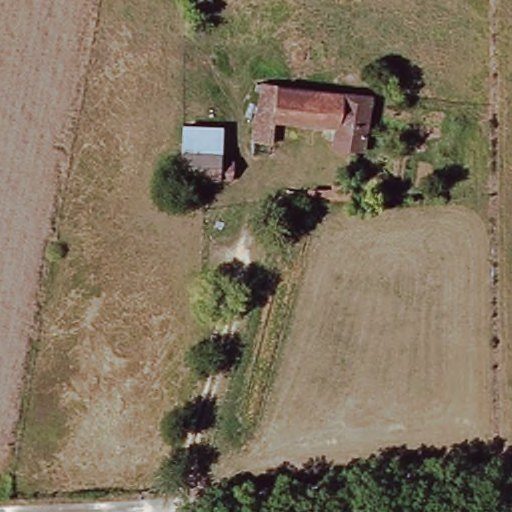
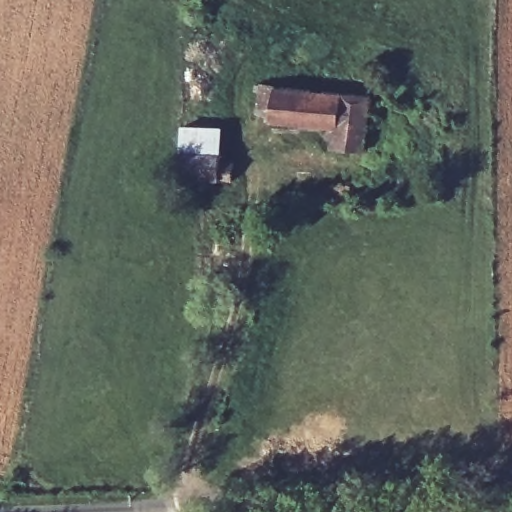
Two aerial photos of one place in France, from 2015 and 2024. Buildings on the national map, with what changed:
unchanged [(259,146),(260,127),(251,122),(247,117),(248,111),(253,108),(262,107),(265,86),(370,98),(363,153),(338,150),(336,127),(283,121),(277,148),(259,146)]
unchanged [(221,161),(234,163),(233,182),(180,180),(182,127),(222,128),(221,161)]
unchanged [(354,219),(318,214),(318,206),(335,206),(336,203),(337,198),(358,200),(357,204),(354,219)]

